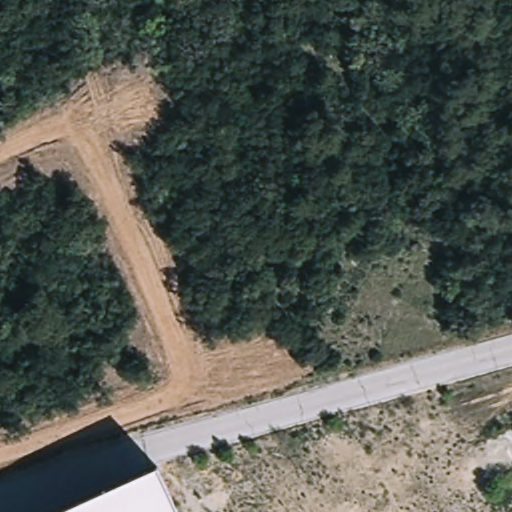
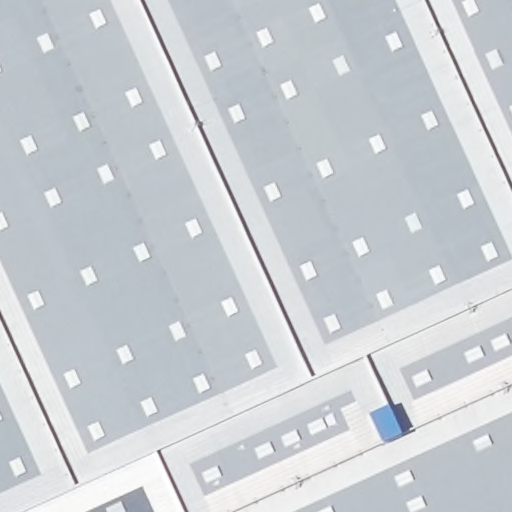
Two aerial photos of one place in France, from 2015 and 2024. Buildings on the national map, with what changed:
new [(155,463),(49,512),(0,512),(0,0),(512,0),(512,512),(177,512),(155,463)]
unchanged [(155,463),(177,512),(49,512),(155,463)]

